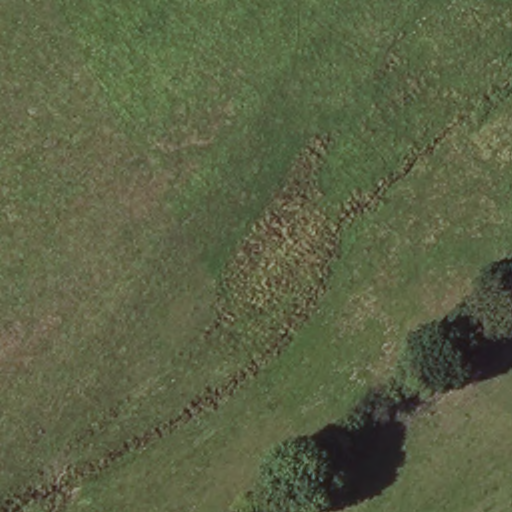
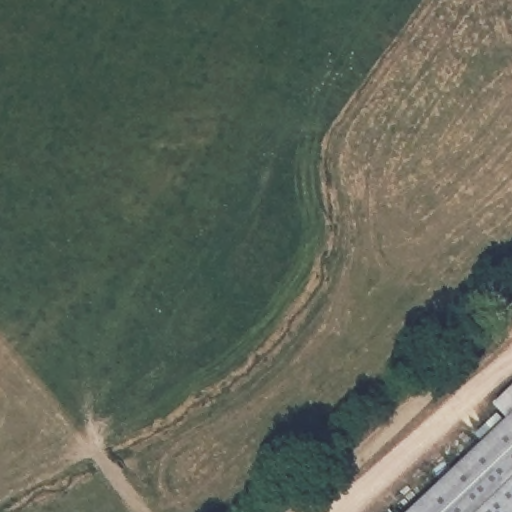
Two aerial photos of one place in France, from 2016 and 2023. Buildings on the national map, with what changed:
new [(507,417),(494,402),(512,386),(512,512),(408,512),(507,417)]

